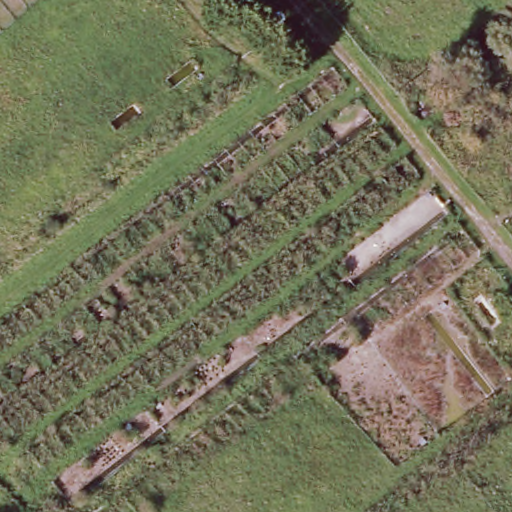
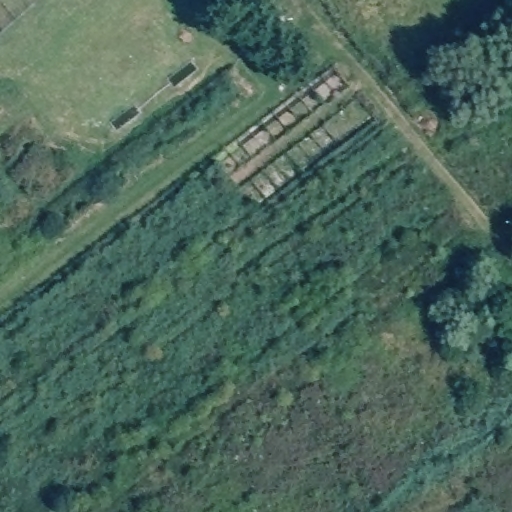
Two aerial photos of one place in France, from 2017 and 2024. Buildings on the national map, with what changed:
unchanged [(244,0),(248,0),(246,2),(244,0)]

